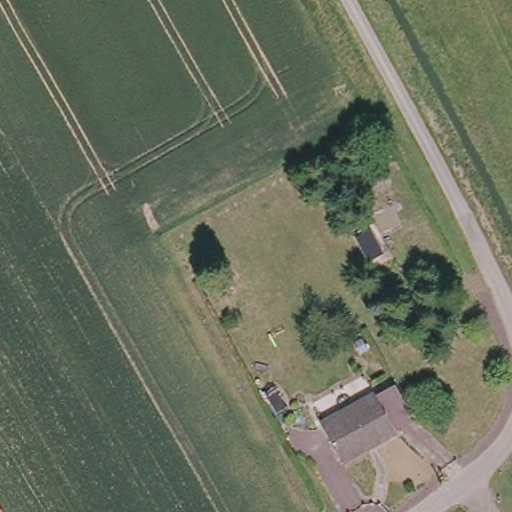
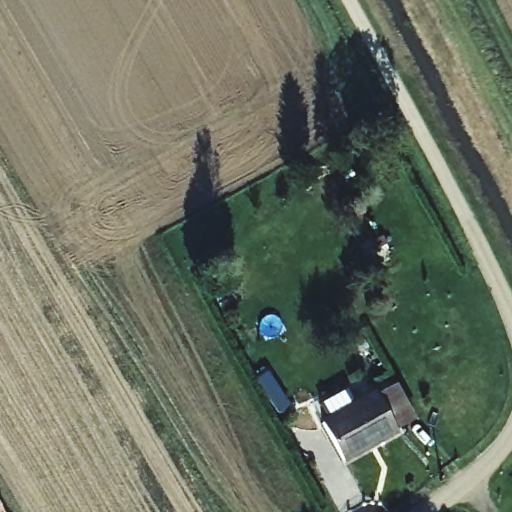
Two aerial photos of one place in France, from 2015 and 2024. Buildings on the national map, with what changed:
unchanged [(342,456),(320,418),(374,388),(395,426),(342,456)]
unchanged [(0,510),(0,508),(1,509),(0,510)]

